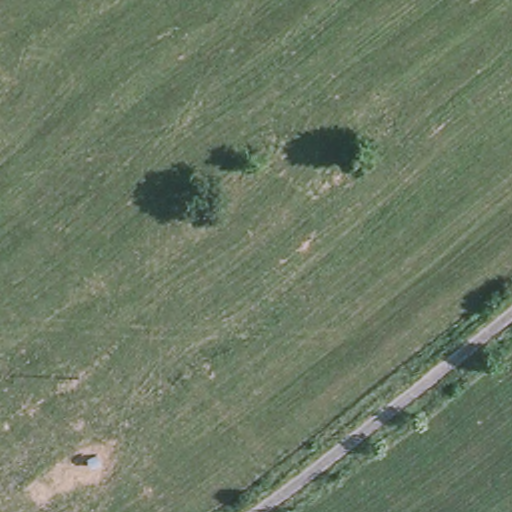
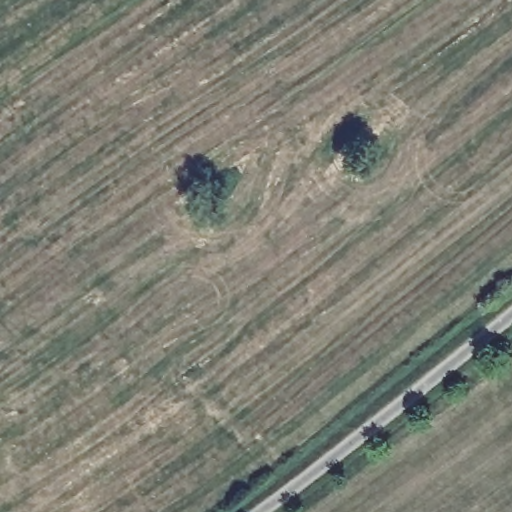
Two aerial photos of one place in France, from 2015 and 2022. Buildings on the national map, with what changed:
[]

